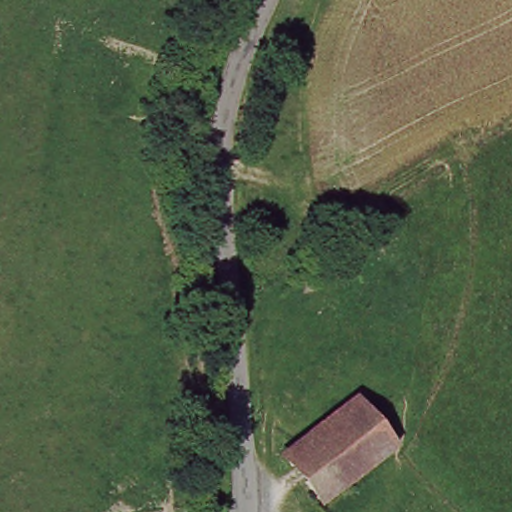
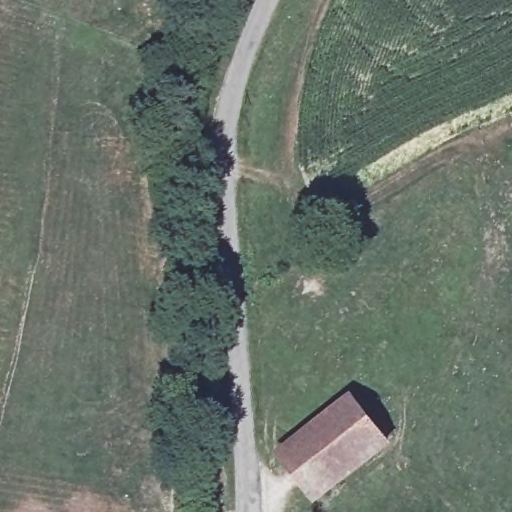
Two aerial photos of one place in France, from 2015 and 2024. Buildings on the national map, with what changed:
unchanged [(353,406),(381,450),(310,501),(277,454),(350,401),(353,406)]

